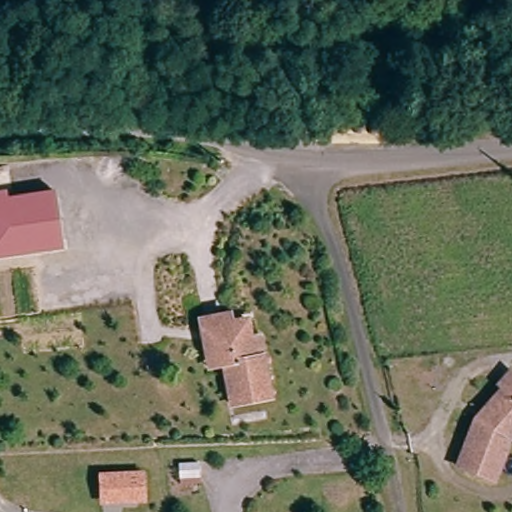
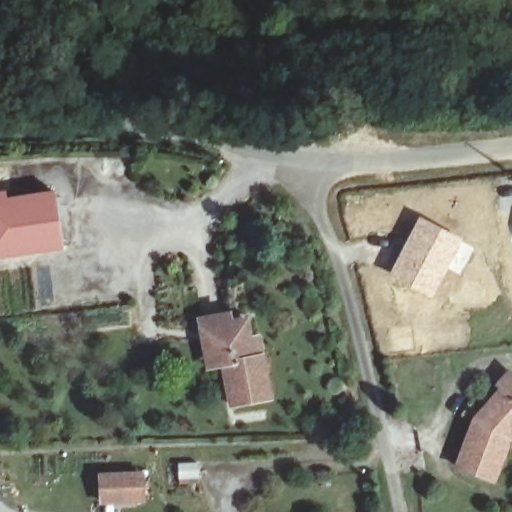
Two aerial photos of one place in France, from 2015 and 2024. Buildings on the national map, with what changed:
unchanged [(61,246),(0,258),(0,201),(51,191),(61,246)]
new [(418,215),(463,240),(430,298),(386,277),(418,215)]
unchanged [(241,338),(250,336),(254,354),(263,396),(224,404),(215,364),(200,367),(190,320),(220,314),(221,322),(237,319),(241,338)]
unchanged [(445,459),(457,428),(485,393),(482,390),(491,379),(507,391),(512,385),(512,425),(510,427),(512,428),(512,443),(502,456),(492,449),(489,453),(480,476),(475,486),(440,473),(445,459)]
unchanged [(176,461),(199,459),(200,475),(176,476),(176,461)]
unchanged [(142,468),(144,493),(105,496),(102,471),(142,468)]

